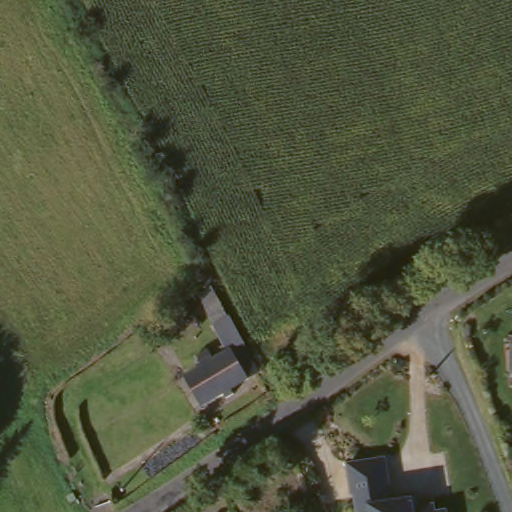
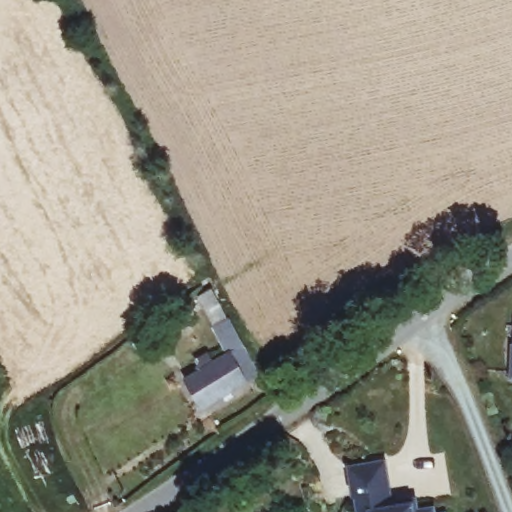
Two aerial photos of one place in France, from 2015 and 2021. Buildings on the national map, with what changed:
unchanged [(188,309),(205,297),(248,378),(198,413),(180,385),(216,358),(188,309)]
unchanged [(506,349),(512,350),(512,382),(506,382),(506,349)]
unchanged [(362,495),(359,496),(354,463),(389,459),(394,491),(398,490),(400,505),(421,502),(423,511),(443,508),(443,512),(365,512),(362,495)]

